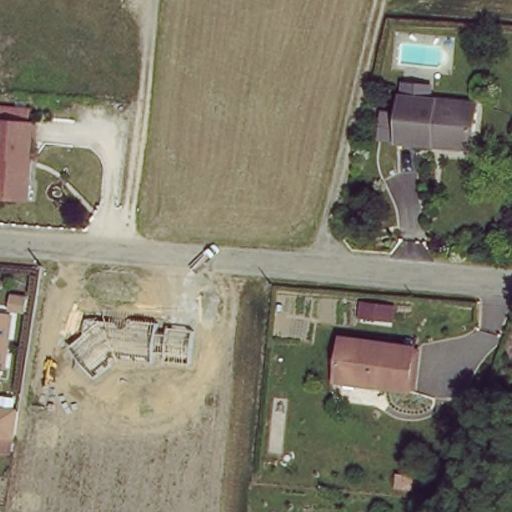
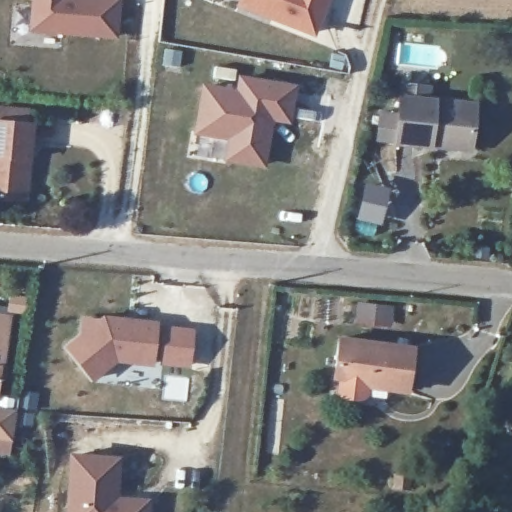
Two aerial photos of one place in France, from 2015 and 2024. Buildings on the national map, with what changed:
new [(116,38),(33,30),(35,0),(107,0),(120,1),(116,38)]
new [(328,0),(314,36),(236,6),(238,0),(328,0)]
new [(227,139),(193,134),(202,83),(236,88),(238,74),(298,84),(291,124),(273,121),(265,168),(224,160),(227,139)]
unchanged [(434,148),(398,146),(401,100),(477,107),(475,139),(474,151),(434,148)]
unchanged [(21,196),(0,194),(0,117),(34,121),(32,156),(29,197),(21,196)]
unchanged [(11,314),(3,368),(0,368),(0,312),(11,314)]
new [(79,334),(81,318),(111,322),(117,330),(129,319),(153,321),(152,332),(162,333),(163,326),(189,329),(186,363),(159,360),(160,352),(150,351),(149,361),(107,357),(107,363),(90,377),(65,346),(79,334)]
unchanged [(417,349),(413,393),(338,385),(347,341),(417,349)]
unchanged [(18,412),(15,435),(0,433),(0,412),(18,412)]
new [(71,454),(117,456),(115,496),(147,498),(146,512),(68,512),(71,454)]

